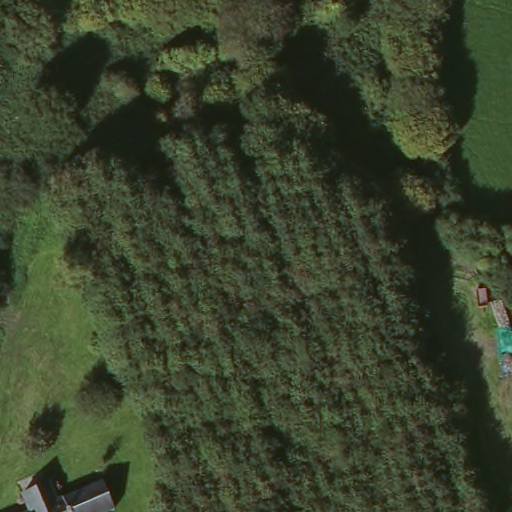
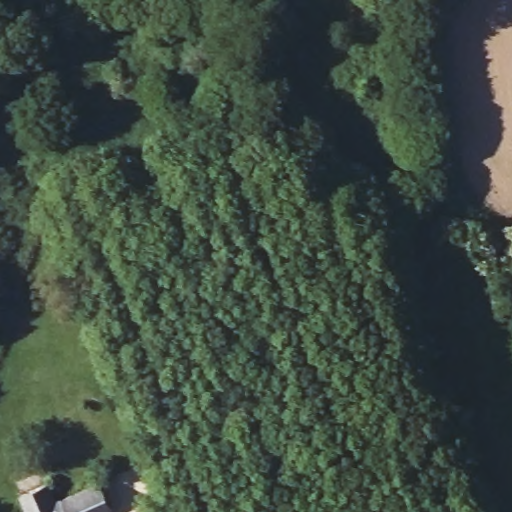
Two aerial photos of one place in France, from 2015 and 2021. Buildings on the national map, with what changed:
unchanged [(112,512),(23,512),(18,497),(46,484),(54,503),(99,482),(112,512)]

